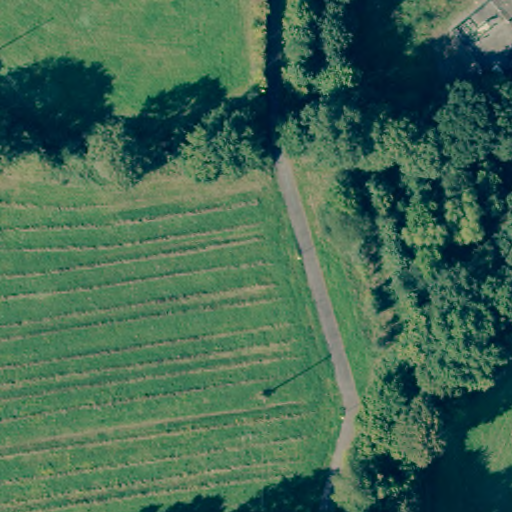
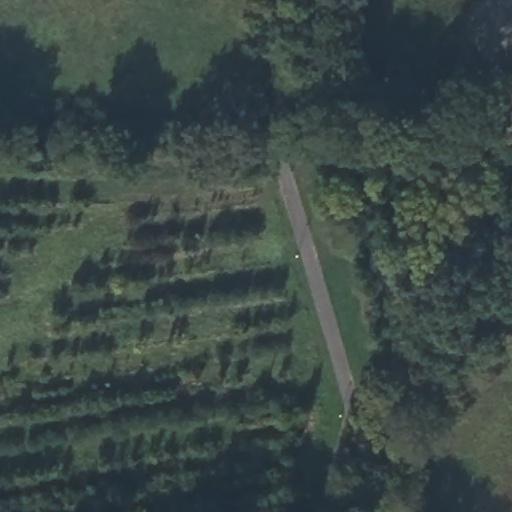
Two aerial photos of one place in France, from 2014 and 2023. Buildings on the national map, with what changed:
[]

